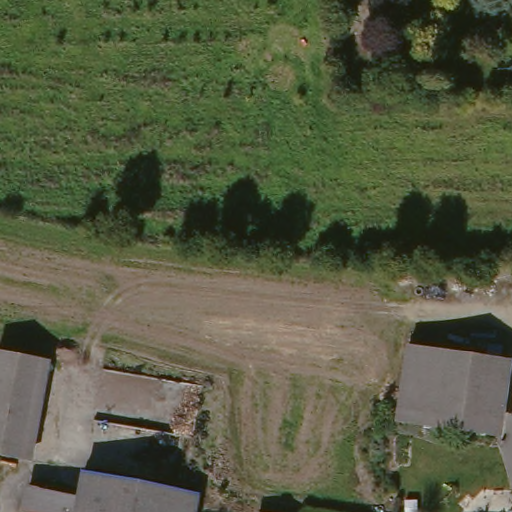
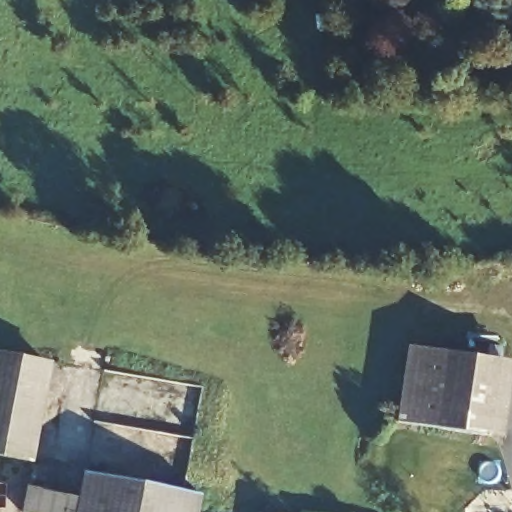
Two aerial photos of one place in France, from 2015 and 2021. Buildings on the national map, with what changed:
unchanged [(391,423),(404,345),(512,364),(512,371),(497,439),(391,423)]
unchanged [(31,461),(0,455),(0,353),(49,362),(31,461)]
unchanged [(25,492),(78,500),(83,477),(111,482),(105,512),(21,512),(25,492)]
unchanged [(201,498),(199,508),(199,512),(105,512),(111,482),(201,498)]

